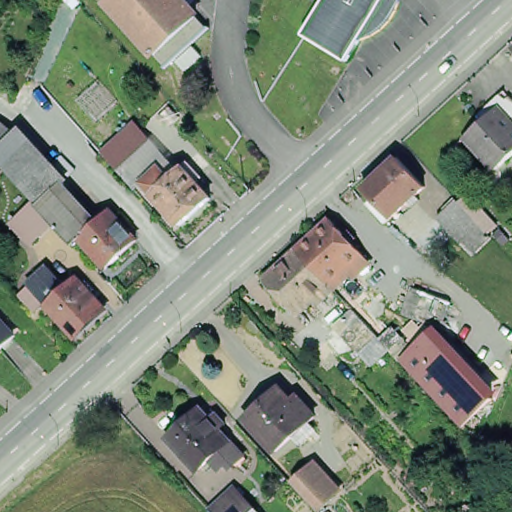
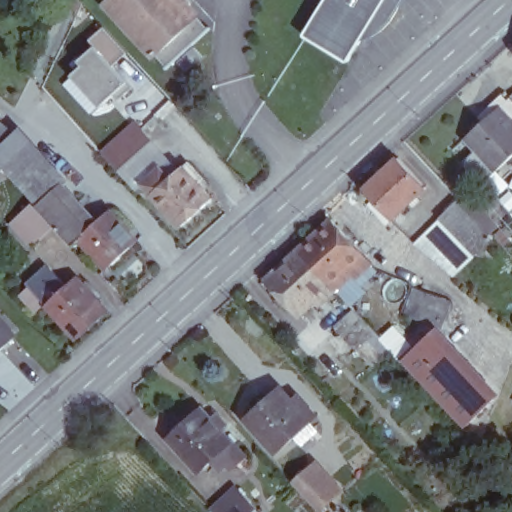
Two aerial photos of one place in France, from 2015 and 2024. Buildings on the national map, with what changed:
unchanged [(161,0),(135,24),(113,0),(161,0)]
unchanged [(186,0),(207,25),(209,23),(210,24),(167,64),(166,62),(167,60),(135,24),(161,0),(186,0)]
unchanged [(307,37),(328,0),(387,0),(350,61),(307,37)]
new [(77,60),(93,45),(88,39),(103,25),(127,52),(113,65),(128,81),(90,114),(62,82),(80,65),(77,60)]
unchanged [(512,112),(512,158),(512,157),(494,175),(462,144),(502,102),(512,112)]
unchanged [(81,239),(67,247),(38,209),(0,163),(0,117),(22,126),(72,180),(68,187),(98,220),(112,210),(144,243),(106,271),(81,239)]
unchanged [(182,170),(173,178),(163,167),(145,184),(149,188),(142,195),(120,170),(103,152),(120,137),(127,130),(133,125),(137,121),(182,170)]
unchanged [(372,189),(405,157),(432,187),(399,219),(397,220),(392,225),(375,205),(377,203),(381,199),(372,189)]
unchanged [(149,188),(145,184),(163,167),(173,178),(182,170),(190,162),(205,178),(199,183),(213,199),(183,226),(149,188)]
unchanged [(440,217),(458,200),(462,204),(470,197),(497,227),(490,234),(493,238),(475,255),(440,217)]
unchanged [(415,351),(405,360),(405,359),(402,362),(363,320),(353,330),(344,319),(355,310),(345,300),(337,290),(321,305),(317,301),(300,316),(267,280),(300,249),(332,220),(366,256),(350,271),(353,276),(362,285),(360,285),(370,296),(366,300),(408,344),(415,351)]
unchanged [(105,312),(75,340),(49,310),(46,308),(37,316),(23,301),(32,293),(30,290),(50,271),(65,288),(61,291),(65,295),(78,283),(105,312)]
unchanged [(455,303),(445,331),(407,315),(416,289),(455,303)]
unchanged [(23,332),(0,351),(0,306),(23,332)]
unchanged [(415,351),(434,333),(495,400),(466,426),(405,360),(415,351)]
unchanged [(248,417),(280,388),(293,401),(298,396),(317,416),(310,422),(317,428),(302,442),(296,436),(279,451),(248,417)]
unchanged [(169,443),(202,413),(212,425),(218,420),(227,429),(222,435),(233,446),(200,476),(169,443)]
unchanged [(298,482),(315,466),(342,496),(325,511),(298,482)]
unchanged [(238,487),(257,510),(255,512),(212,512),(212,511),(238,487)]

